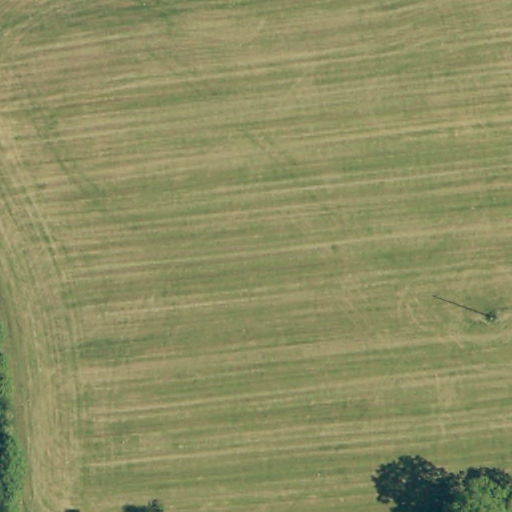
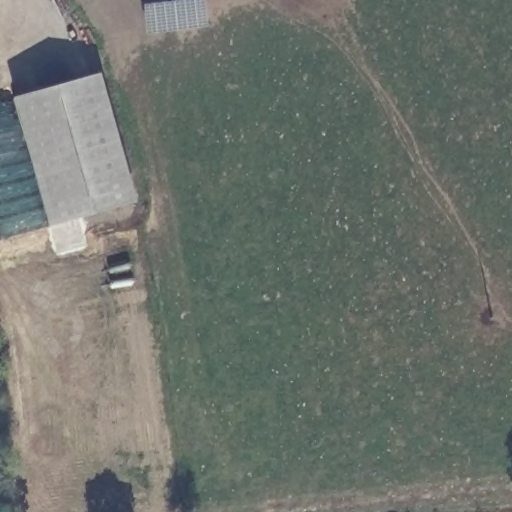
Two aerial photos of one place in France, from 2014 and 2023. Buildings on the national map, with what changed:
new [(137,201),(49,226),(13,97),(100,72),(137,201)]

